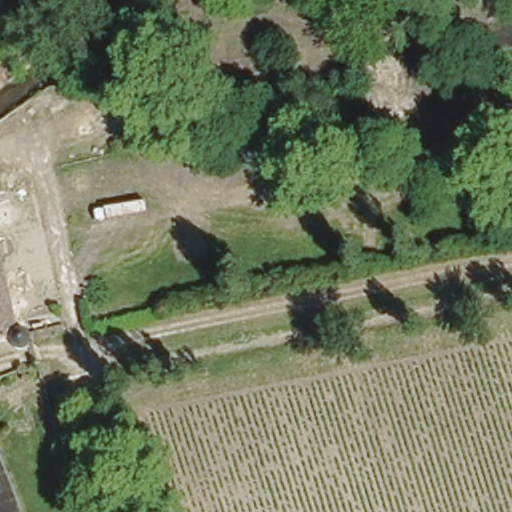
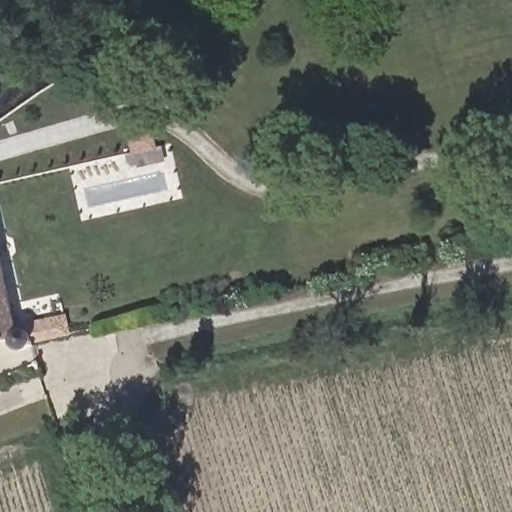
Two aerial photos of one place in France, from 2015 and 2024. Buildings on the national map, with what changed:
unchanged [(11,310),(14,322),(14,327),(18,329),(65,317),(70,335),(27,347),(21,351),(14,353),(8,351),(4,344),(0,345),(0,260),(11,308),(11,310)]

